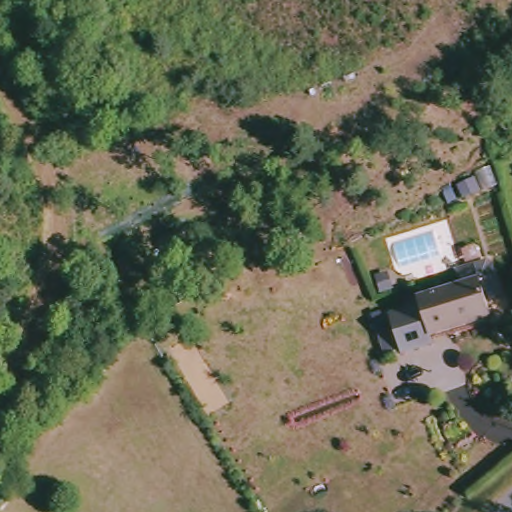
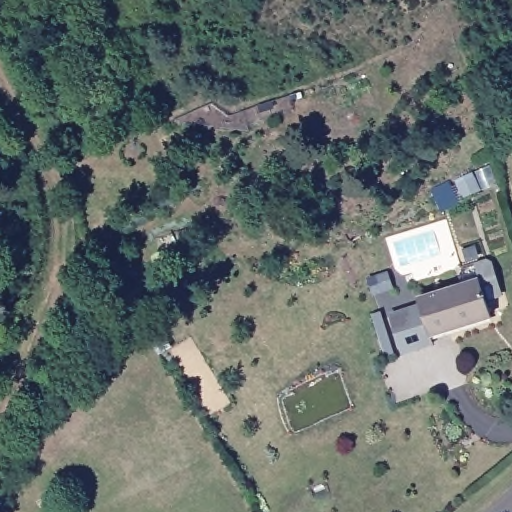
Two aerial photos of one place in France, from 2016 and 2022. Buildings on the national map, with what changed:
unchanged [(472,177),(477,189),(462,194),(458,182),(472,177)]
unchanged [(434,344),(404,354),(392,317),(422,308),(420,301),(465,287),(462,275),(465,270),(489,263),(494,265),(497,277),(482,282),(493,318),(431,338),(434,344)]
unchanged [(378,278),(386,274),(392,287),(384,290),(378,278)]

